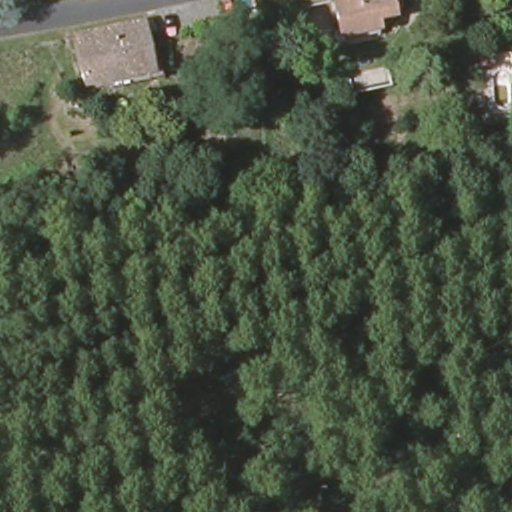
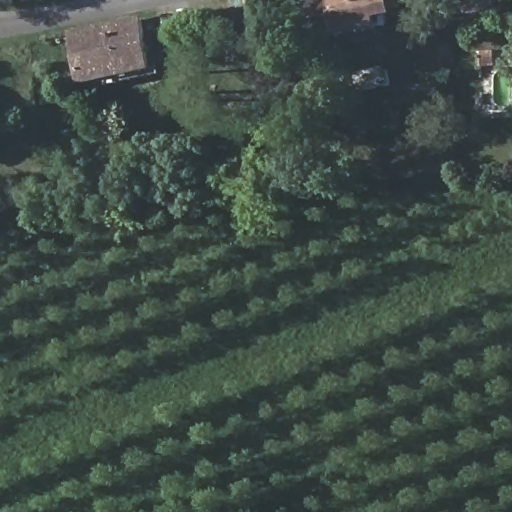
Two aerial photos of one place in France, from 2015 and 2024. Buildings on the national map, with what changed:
unchanged [(373,17),(374,31),(339,37),(335,2),(348,0),(396,0),(398,12),(373,17)]
unchanged [(155,71),(85,85),(74,36),(145,19),(155,71)]

